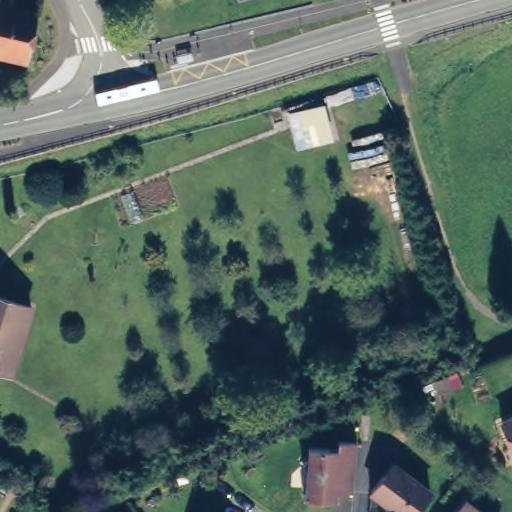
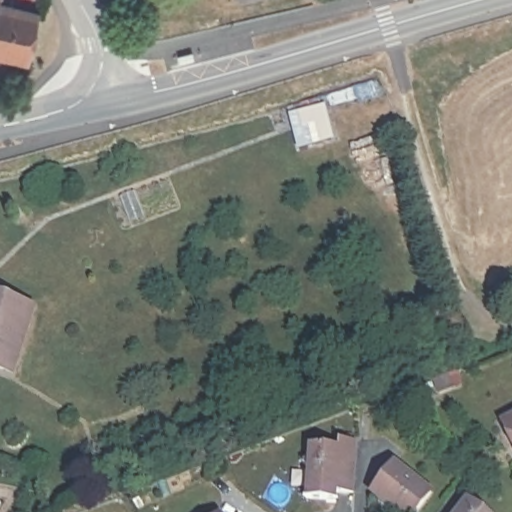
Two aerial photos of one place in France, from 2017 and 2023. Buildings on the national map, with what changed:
unchanged [(38,10),(27,56),(0,50),(0,2),(38,10)]
unchanged [(291,115),(322,108),(330,139),(298,146),(291,115)]
unchanged [(32,303),(10,369),(0,366),(0,292),(32,303)]
unchanged [(446,379),(450,390),(437,395),(432,384),(446,379)]
unchanged [(512,417),(512,444),(502,423),(512,417)]
unchanged [(333,500),(310,498),(310,486),(312,469),(307,464),(312,459),(313,446),(342,449),(343,441),(360,442),(357,494),(341,492),(340,500),(333,500)]
unchanged [(430,493),(415,512),(397,512),(371,492),(393,464),(430,493)]
unchanged [(466,501),(481,512),(457,512),(466,501)]

